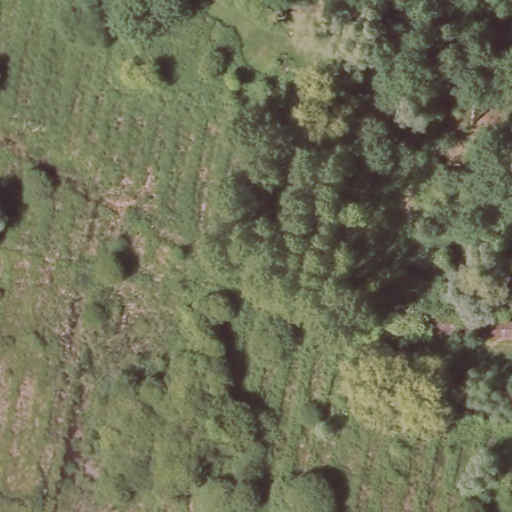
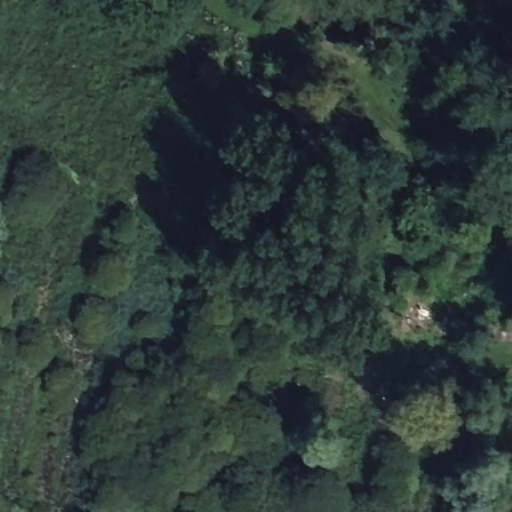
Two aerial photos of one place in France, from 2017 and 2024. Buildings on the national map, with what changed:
unchanged [(503,351),(504,315),(512,316),(512,352),(503,351)]

